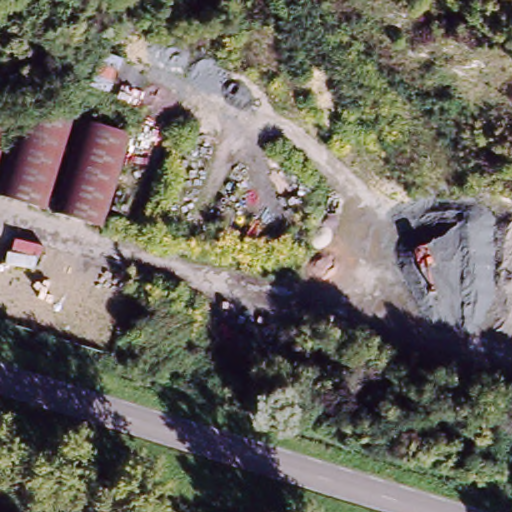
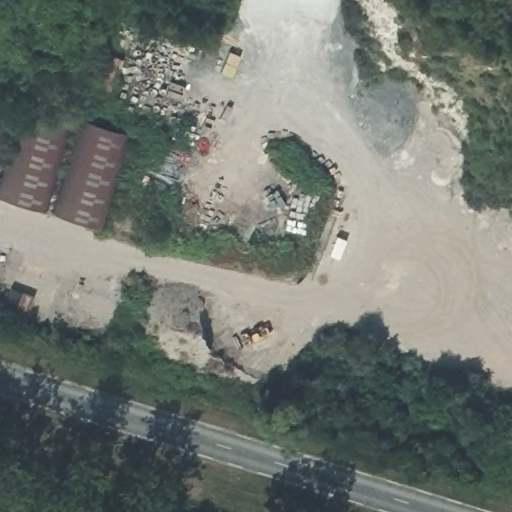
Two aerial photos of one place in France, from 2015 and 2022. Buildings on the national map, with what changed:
unchanged [(20,98),(0,157),(0,92),(20,98)]
unchanged [(27,99),(78,118),(47,215),(0,199),(0,180),(27,99)]
unchanged [(85,121),(133,136),(105,230),(54,214),(85,121)]

